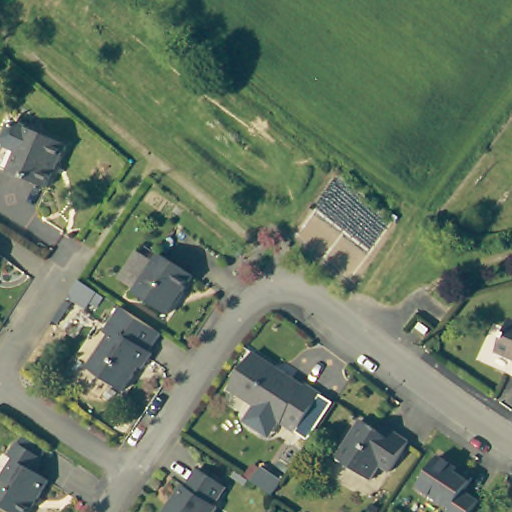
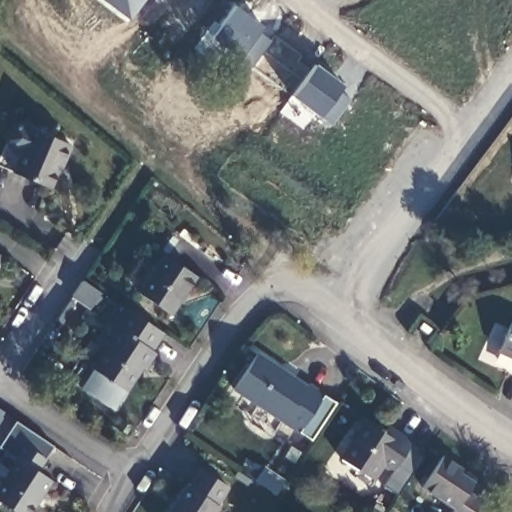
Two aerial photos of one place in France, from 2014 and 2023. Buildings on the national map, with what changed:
new [(103,0),(140,0),(128,18),(103,0)]
new [(234,5),(263,26),(259,32),(271,41),(252,67),(211,37),(234,5)]
new [(315,65),(344,85),(340,91),(352,100),(333,126),(292,96),(315,65)]
unchanged [(63,161),(61,160),(50,187),(12,172),(21,151),(9,146),(6,140),(11,125),(18,123),(70,144),(63,161)]
unchanged [(197,274),(171,312),(138,288),(163,250),(197,274)]
unchanged [(0,263),(0,252),(3,253),(0,263)]
unchanged [(96,304),(76,290),(86,276),(106,289),(96,304)]
unchanged [(165,330),(154,346),(158,349),(146,367),(143,365),(126,389),(93,368),(114,334),(108,329),(125,303),(165,330)]
unchanged [(501,355),(512,329),(512,360),(501,355)]
unchanged [(265,433),(252,424),(251,413),(257,403),(233,387),(257,352),(310,387),(311,385),(324,394),(299,431),(282,420),(275,430),(265,433)]
unchanged [(382,428),(386,421),(411,438),(393,469),(383,464),(373,478),(339,455),(362,416),(382,428)]
unchanged [(44,467),(58,477),(35,512),(17,512),(0,501),(0,489),(16,464),(10,459),(24,438),(52,454),(44,467)]
unchanged [(471,482),(465,494),(481,505),(476,512),(447,512),(418,493),(439,461),(471,482)]
unchanged [(233,482),(221,499),(224,503),(218,512),(166,512),(187,481),(192,484),(204,464),(233,482)]
unchanged [(288,477),(279,491),(256,478),(266,464),(288,477)]

